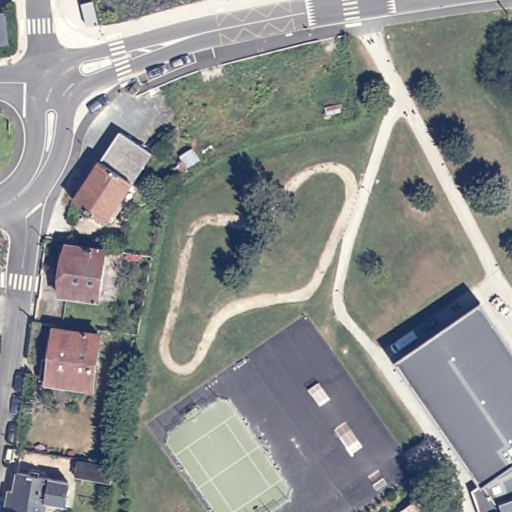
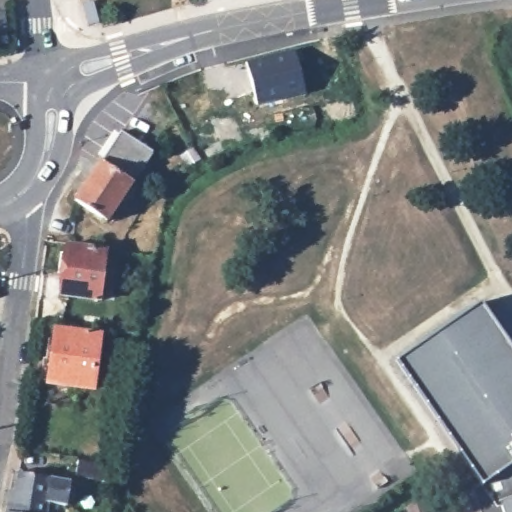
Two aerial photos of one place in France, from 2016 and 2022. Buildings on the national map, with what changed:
unchanged [(9,47),(0,48),(0,14),(5,14),(9,47)]
new [(257,105),(246,62),(293,51),(305,94),(257,105)]
unchanged [(79,200),(113,150),(126,130),(158,152),(145,171),(111,220),(79,200)]
unchanged [(110,249),(104,298),(62,292),(70,243),(110,249)]
unchanged [(512,345),(512,512),(496,512),(496,511),(395,360),(484,300),(512,345)]
unchanged [(58,328),(102,335),(95,387),(50,380),(58,328)]
unchanged [(116,479),(95,475),(84,474),(86,458),(98,460),(119,463),(116,479)]
unchanged [(23,486),(26,467),(76,478),(71,512),(10,512),(15,485),(23,486)]
unchanged [(412,512),(432,498),(436,512),(412,512)]

